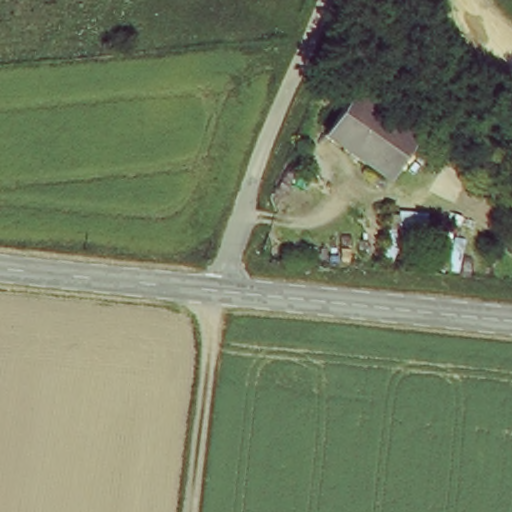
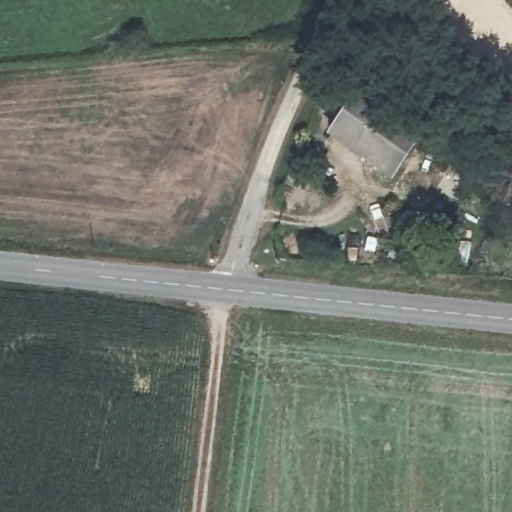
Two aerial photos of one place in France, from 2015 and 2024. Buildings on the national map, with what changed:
unchanged [(332,135),(360,95),(424,136),(396,177),(332,135)]

